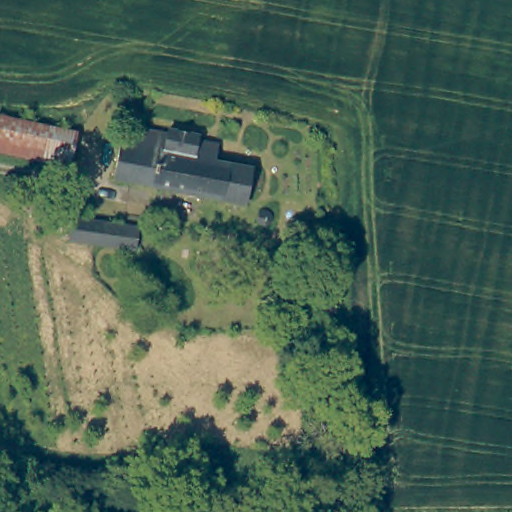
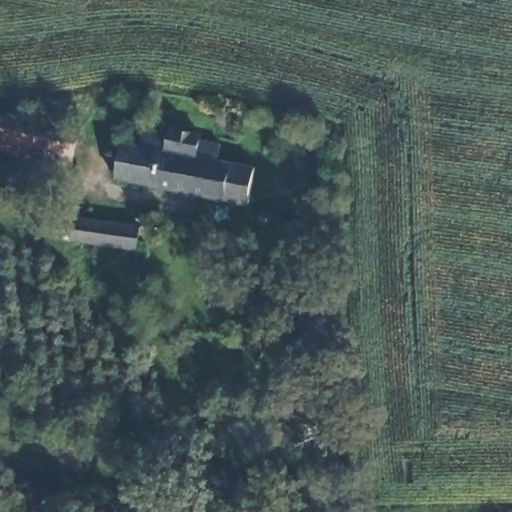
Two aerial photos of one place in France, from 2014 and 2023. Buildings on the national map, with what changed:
unchanged [(70,167),(0,151),(0,115),(78,132),(70,167)]
unchanged [(265,209),(241,204),(109,179),(115,143),(132,146),(136,130),(163,135),(164,130),(194,136),(192,141),(214,145),(211,161),(249,168),(272,173),(265,209)]
unchanged [(257,209),(261,209),(265,211),(267,214),(267,221),(262,226),(258,227),(255,226),(251,223),(250,219),(250,216),(251,212),(255,210),(257,209)]
unchanged [(135,250),(70,240),(75,217),(139,228),(135,250)]

